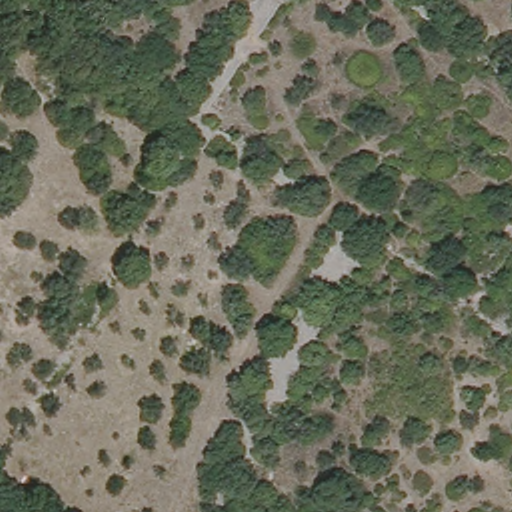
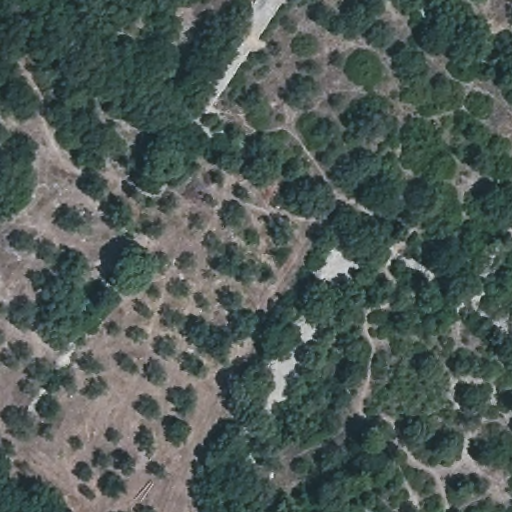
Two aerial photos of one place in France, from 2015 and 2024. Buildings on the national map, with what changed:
[]

